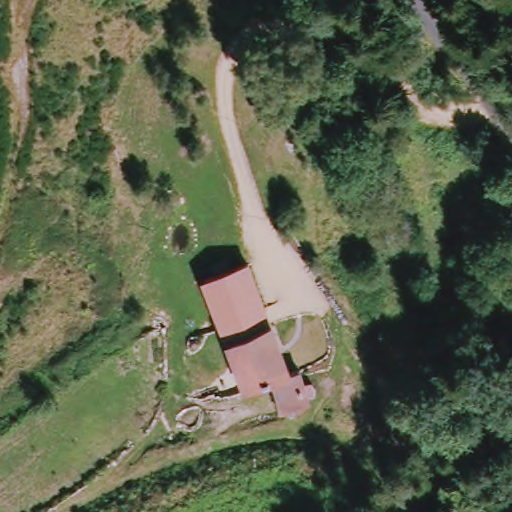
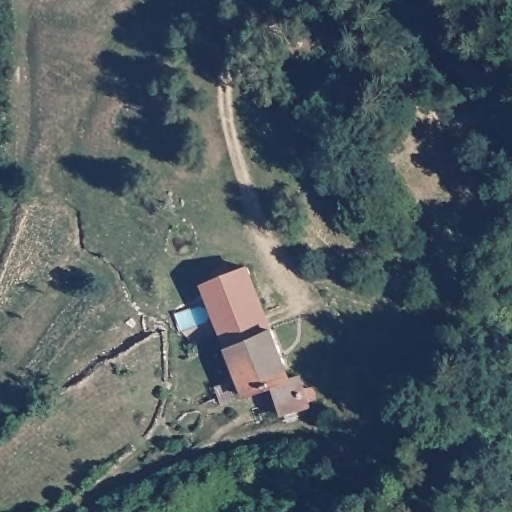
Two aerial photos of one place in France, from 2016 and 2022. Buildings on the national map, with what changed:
unchanged [(302,382),(306,396),(315,395),(320,398),(320,405),(311,410),(313,416),(290,423),(280,391),(248,400),(223,321),(212,287),(225,282),(222,275),(237,266),(241,278),(257,273),(272,268),(288,311),(277,317),(284,334),(277,337),(292,385),(302,382)]

